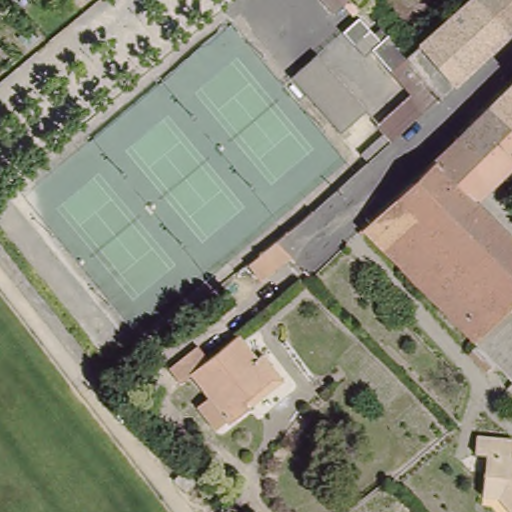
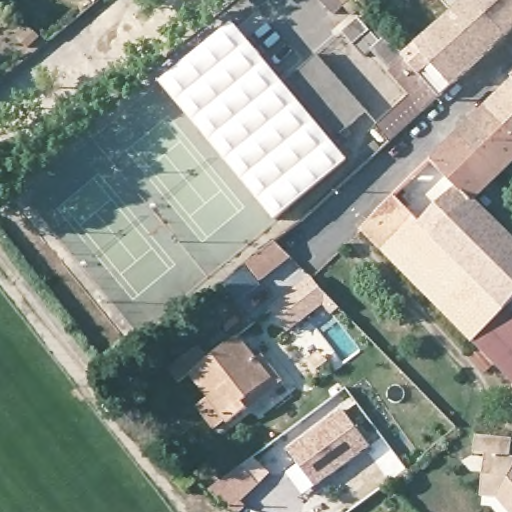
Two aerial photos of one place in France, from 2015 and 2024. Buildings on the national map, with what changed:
unchanged [(357,2),(348,9),(340,0),(358,0),(359,0),(357,2)]
unchanged [(506,35),(440,97),(438,95),(406,56),(470,0),(475,0),(506,35)]
unchanged [(506,35),(475,0),(512,0),(512,30),(506,35)]
unchanged [(365,162),(359,155),(380,135),(372,126),(409,95),(371,50),(364,57),(342,31),(359,17),(374,35),(381,27),(406,56),(438,95),(433,100),(420,111),(387,142),(385,144),(365,162)]
new [(277,220),(162,81),(235,20),(350,160),(277,220)]
unchanged [(322,54),(370,111),(349,130),(353,135),(347,139),(295,76),(322,54)]
unchanged [(496,178),(455,135),(464,127),(512,81),(512,162),(496,178)]
unchanged [(475,196),(436,155),(455,135),(496,178),(475,196)]
unchanged [(397,193),(436,155),(475,196),(436,234),(397,193)]
unchanged [(475,340),(450,314),(362,226),(397,193),(436,234),(506,307),(475,340)]
unchanged [(475,196),(512,235),(512,301),(506,307),(436,234),(475,196)]
new [(292,257),(258,280),(260,285),(240,301),(227,283),(249,263),(276,241),(292,257)]
demolished [(280,248),(298,268),(280,285),(261,263),(280,248)]
new [(312,275),(342,308),(332,314),(322,305),(289,330),(270,307),(312,275)]
unchanged [(506,307),(512,313),(512,377),(475,340),(506,307)]
unchanged [(255,360),(269,377),(239,401),(247,410),(227,424),(187,374),(175,383),(163,368),(195,344),(207,357),(235,335),(255,360)]
new [(371,445),(317,485),(289,448),(344,409),(371,445)]
unchanged [(496,491),(480,490),(482,466),(484,448),(473,447),(475,430),(511,434),(509,452),(512,453),(512,511),(496,491)]
new [(271,472),(261,484),(230,510),(212,490),(254,457),(271,472)]
unchanged [(190,506),(177,495),(189,482),(201,495),(190,506)]
unchanged [(222,512),(225,510),(227,512),(222,512)]

